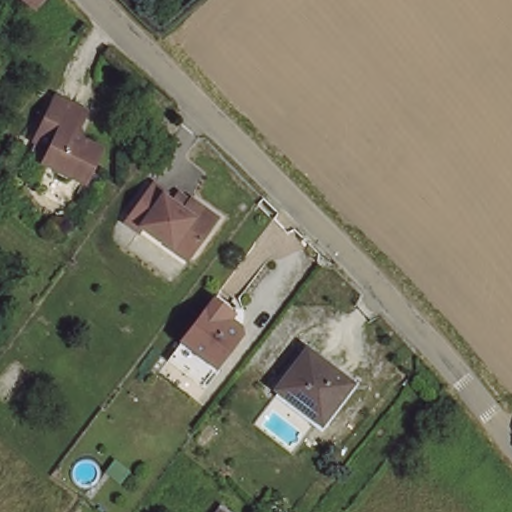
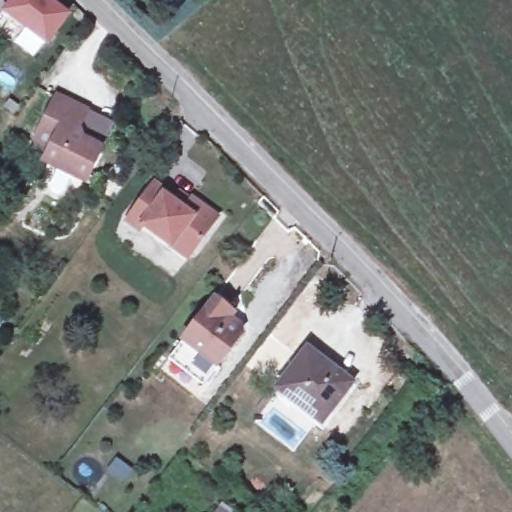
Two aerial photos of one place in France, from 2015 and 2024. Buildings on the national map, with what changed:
new [(9,0),(52,0),(71,14),(46,47),(0,12),(9,0)]
demolished [(41,2),(38,0),(43,0),(41,2)]
unchanged [(37,136),(35,135),(57,91),(87,106),(116,121),(102,143),(86,176),(73,170),(68,171),(60,167),(58,162),(45,156),(31,149),(37,136)]
unchanged [(172,247),(143,226),(140,230),(126,221),(154,183),(167,193),(165,196),(173,202),(180,193),(190,201),(192,199),(217,218),(193,252),(188,259),(172,247)]
unchanged [(179,344),(186,335),(225,284),(228,279),(241,289),(237,293),(231,301),(237,306),(244,306),(250,311),(252,318),(220,361),(212,370),(179,344)]
unchanged [(351,383),(321,423),(277,389),(307,350),(351,383)]
unchanged [(233,512),(217,512),(223,504),(233,512)]

